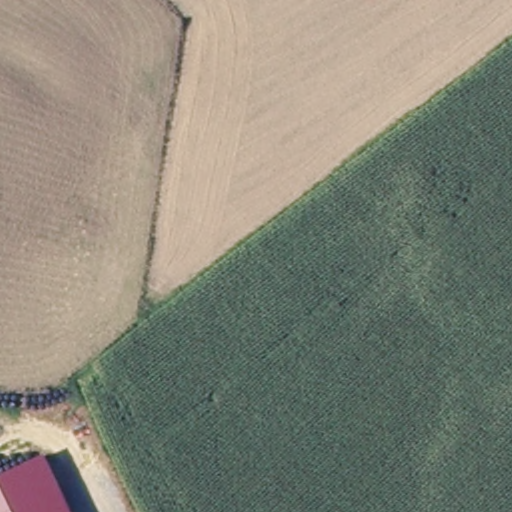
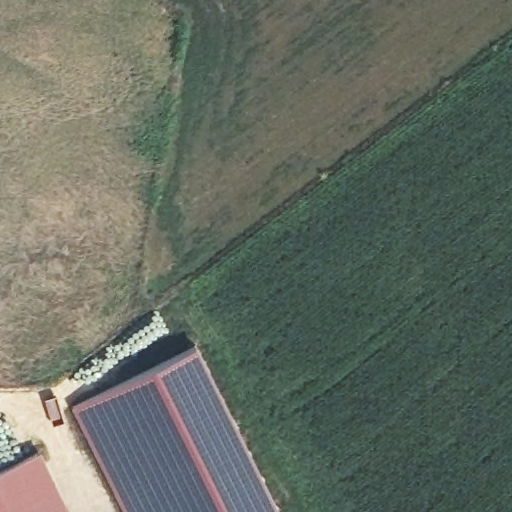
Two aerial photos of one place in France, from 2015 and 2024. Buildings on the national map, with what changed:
new [(196,342),(214,373),(283,512),(124,512),(111,485),(88,442),(70,404),(102,386),(196,342)]
unchanged [(55,488),(35,498),(6,512),(0,512),(0,472),(39,454),(55,488)]
unchanged [(65,512),(42,512),(35,498),(55,488),(65,512)]
unchanged [(42,512),(6,512),(35,498),(42,512)]

